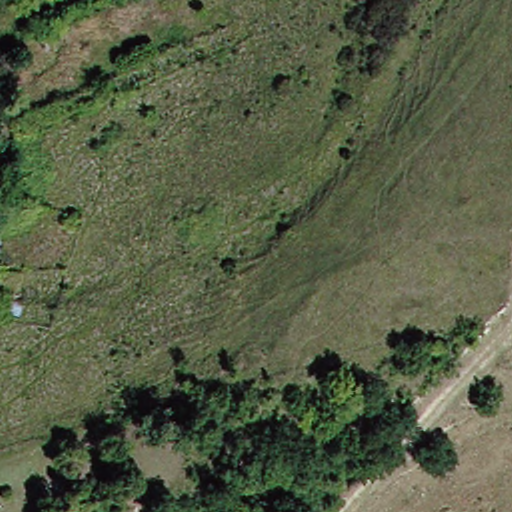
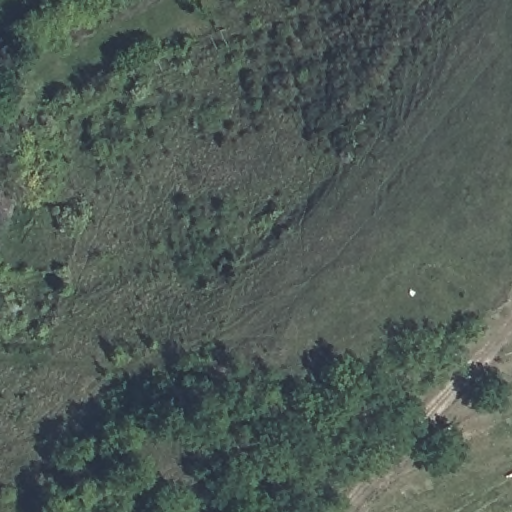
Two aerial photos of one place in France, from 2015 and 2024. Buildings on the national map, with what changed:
unchanged [(0,197),(0,186),(3,187),(0,197)]

